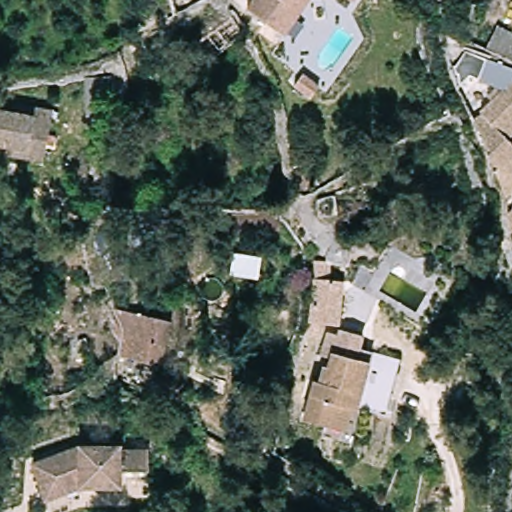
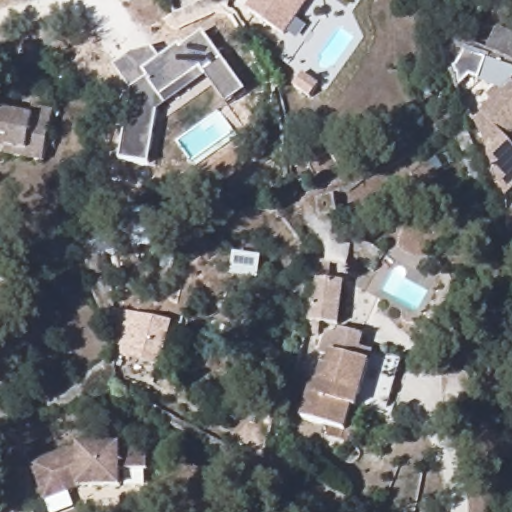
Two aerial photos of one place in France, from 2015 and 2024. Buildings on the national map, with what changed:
unchanged [(251,0),(309,0),(283,34),(246,6),(251,0)]
unchanged [(350,0),(353,0),(352,1),(350,0)]
unchanged [(512,40),(512,65),(510,65),(480,50),(489,30),(512,40)]
new [(150,168),(120,163),(129,106),(132,90),(114,66),(132,53),(153,48),(160,58),(179,45),(181,48),(204,31),(247,91),(227,106),(207,78),(159,111),(150,168)]
unchanged [(301,74),(314,85),(305,96),(291,86),(301,74)]
unchanged [(110,109),(81,110),(81,75),(110,76),(110,109)]
unchanged [(473,114),(504,83),(512,89),(512,131),(500,143),(512,155),(512,189),(503,197),(499,201),(467,121),(472,118),(474,116),(473,114)]
unchanged [(40,161),(2,156),(3,144),(0,144),(0,114),(26,118),(28,109),(47,112),(40,161)]
unchanged [(311,319),(313,304),(313,302),(318,278),(319,265),(326,265),(330,264),(332,282),(342,284),(338,322),(311,319)]
unchanged [(120,329),(109,307),(158,317),(176,321),(171,343),(165,367),(120,356),(124,341),(120,329)]
unchanged [(352,423),(348,422),(345,435),(300,423),(311,382),(317,384),(321,367),(326,369),(329,355),(319,353),(325,331),(337,334),(338,328),(363,335),(359,349),(371,352),(352,423)]
unchanged [(32,460),(79,442),(120,442),(120,446),(148,447),(148,467),(121,468),(120,483),(79,484),(67,488),(64,482),(63,482),(42,490),(38,477),(32,460)]

